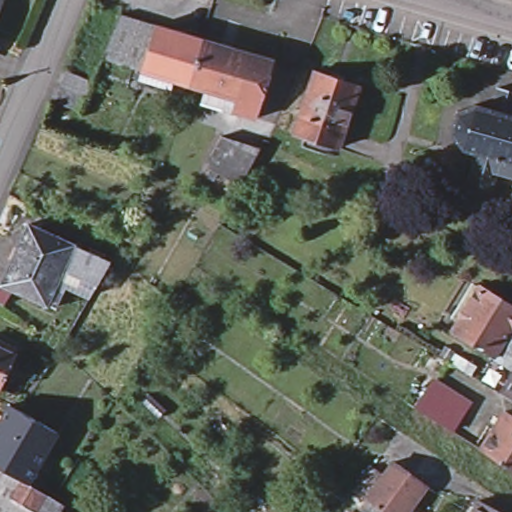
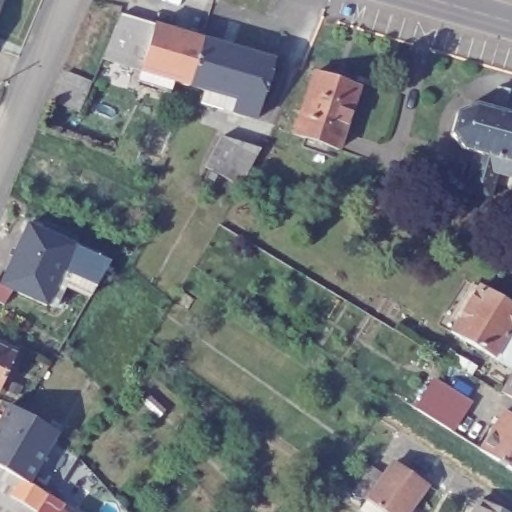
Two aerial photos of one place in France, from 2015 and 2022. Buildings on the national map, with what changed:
unchanged [(204,37),(191,84),(141,69),(133,67),(100,57),(118,13),(152,22),(155,24),(204,37)]
unchanged [(274,57),(257,116),(233,109),(236,97),(226,94),(191,84),(204,37),(250,50),(252,51),(252,52),(274,57)]
unchanged [(315,70),(360,85),(339,147),(294,132),(315,70)]
unchanged [(66,71),(91,80),(78,111),(54,100),(66,71)]
unchanged [(480,151),(467,136),(473,115),(491,107),(497,86),(512,90),(512,174),(497,170),(494,179),(474,173),(480,151)]
unchanged [(475,151),(463,147),(451,132),(457,111),(475,104),(491,107),(473,115),(467,136),(480,151),(474,173),(494,179),(489,196),(464,190),(475,151)]
unchanged [(205,165),(222,134),(243,142),(259,147),(244,177),(240,184),(225,176),(205,165)]
unchanged [(1,281),(28,221),(74,242),(110,258),(98,280),(63,264),(46,302),(1,281)]
unchanged [(474,270),(512,293),(512,310),(480,291),(453,336),(439,327),(474,270)]
unchanged [(453,336),(480,291),(512,310),(512,331),(509,336),(512,337),(512,371),(494,361),(453,336)]
unchanged [(17,345),(14,352),(0,382),(0,337),(17,345)]
unchanged [(512,379),(512,400),(503,394),(512,379)]
unchanged [(429,415),(416,407),(432,382),(434,380),(447,388),(468,402),(466,403),(450,428),(429,415)]
unchanged [(10,407),(57,435),(28,484),(27,486),(53,501),(64,507),(61,512),(0,512),(0,423),(10,407)]
unchanged [(512,415),(512,468),(479,447),(496,422),(504,410),(512,415)]
unchanged [(391,460),(424,482),(401,512),(389,512),(366,496),(391,460)]
unchanged [(477,503),(494,512),(473,512),(477,503)]

